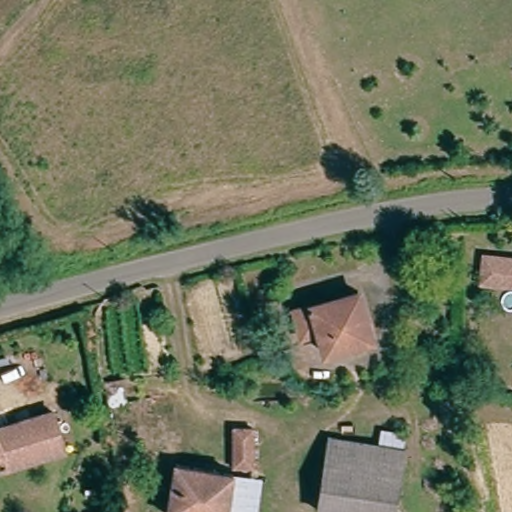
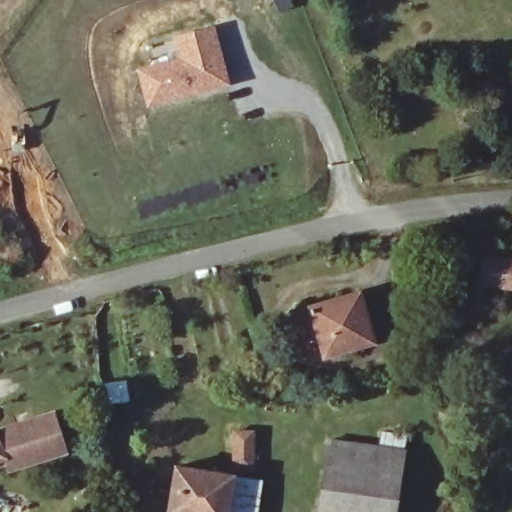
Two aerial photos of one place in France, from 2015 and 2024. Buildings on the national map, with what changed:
new [(230,85),(149,108),(136,68),(178,56),(174,38),(215,28),(230,85)]
unchanged [(512,260),(512,285),(483,283),(485,258),(512,260)]
unchanged [(331,354),(327,331),(301,337),(297,312),(367,298),(378,344),(331,354)]
unchanged [(122,382),(128,403),(111,408),(105,386),(122,382)]
unchanged [(69,448),(0,470),(0,427),(55,409),(69,448)]
unchanged [(234,430),(260,430),(261,479),(235,475),(234,430)]
unchanged [(336,443),(405,448),(399,512),(378,512),(330,508),(336,443)]
unchanged [(230,512),(173,512),(178,467),(227,474),(235,475),(230,512)]
unchanged [(261,485),(258,512),(230,512),(235,475),(261,479),(261,485)]

